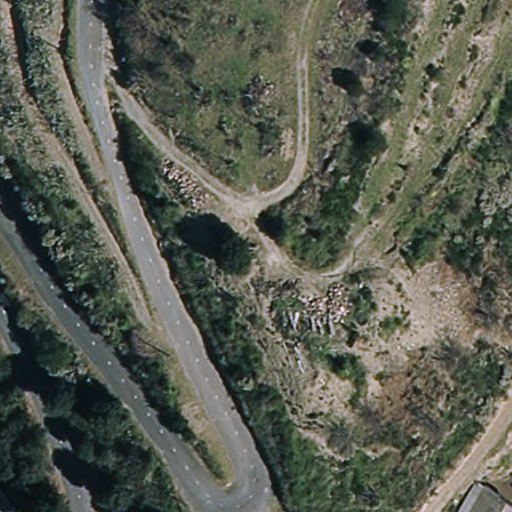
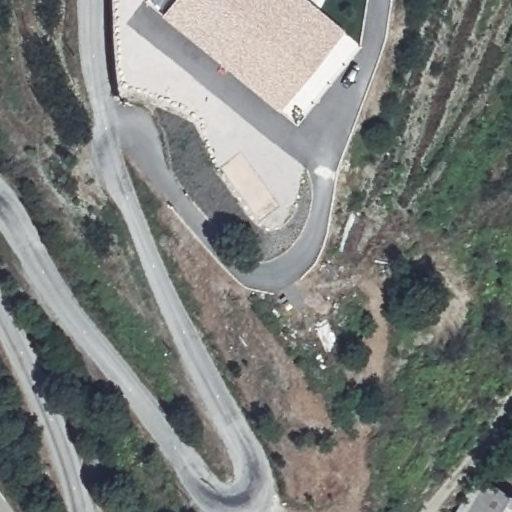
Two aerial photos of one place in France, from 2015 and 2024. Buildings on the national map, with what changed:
new [(146,0),(308,0),(344,29),(362,45),(297,125),(279,111),(162,13),(146,0)]
unchanged [(493,477),(473,512),(462,512),(486,473),(493,477)]
unchanged [(493,477),(512,488),(512,512),(473,512),(493,477)]

